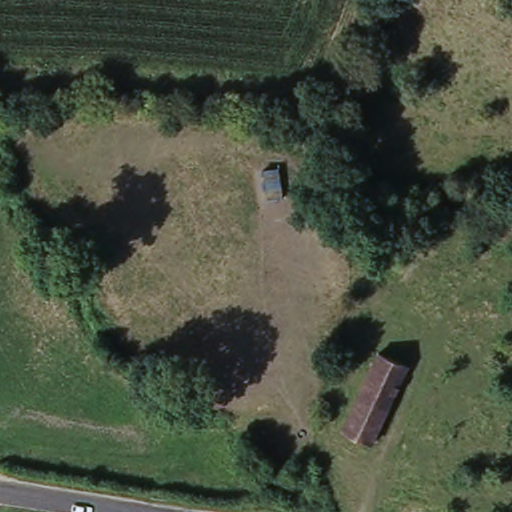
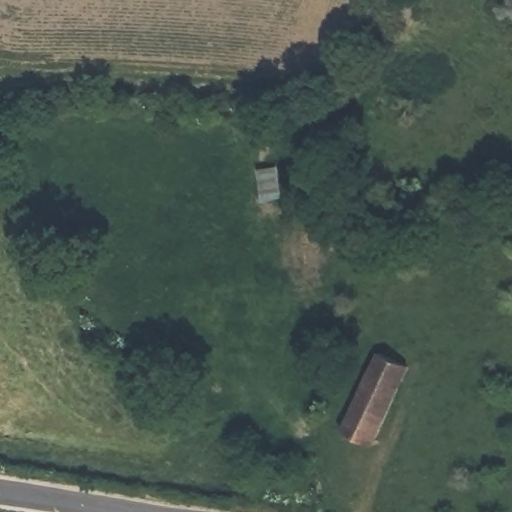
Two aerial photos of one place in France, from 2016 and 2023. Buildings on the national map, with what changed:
unchanged [(404,362),(377,440),(345,428),(373,352),(404,362)]

